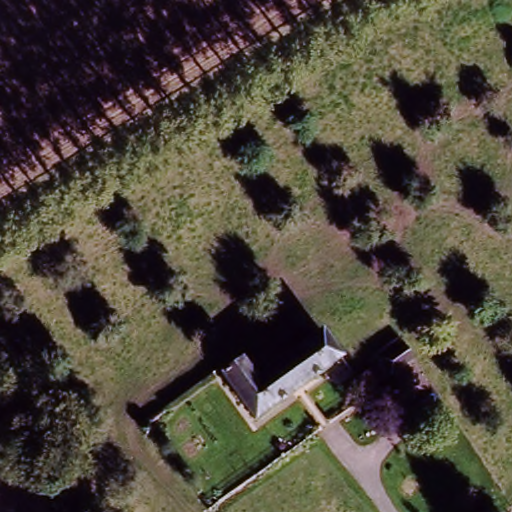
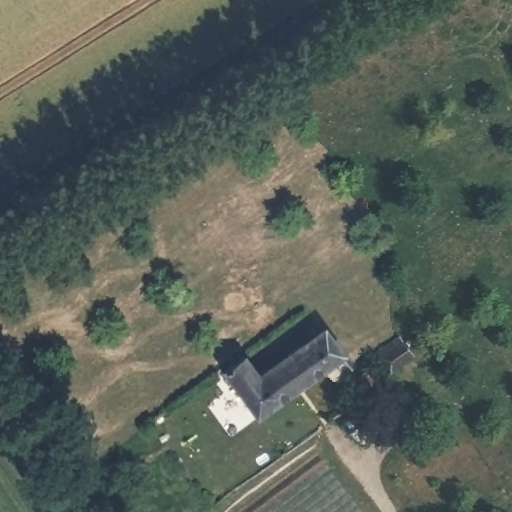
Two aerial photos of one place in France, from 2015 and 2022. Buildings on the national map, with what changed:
unchanged [(384,363),(370,341),(400,323),(415,345),(384,363)]
unchanged [(247,358),(255,374),(330,330),(347,362),(249,419),(222,372),(247,358)]

